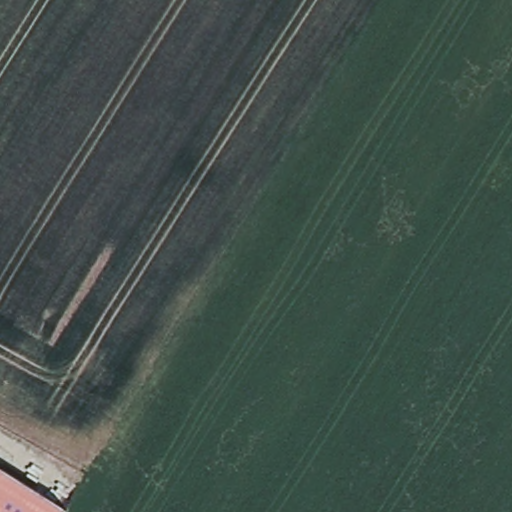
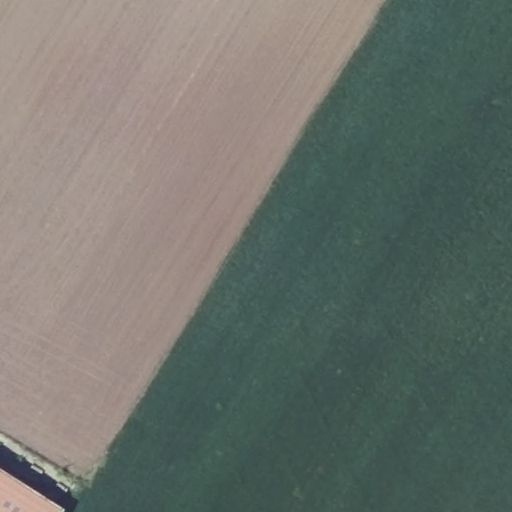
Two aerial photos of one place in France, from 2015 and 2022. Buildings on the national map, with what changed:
unchanged [(0,512),(0,467),(66,509),(64,512),(0,512)]

